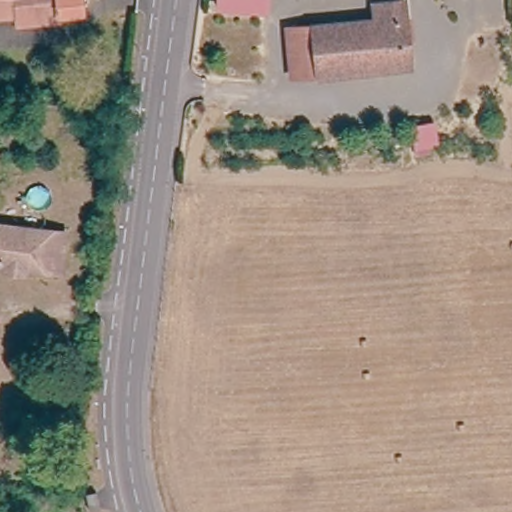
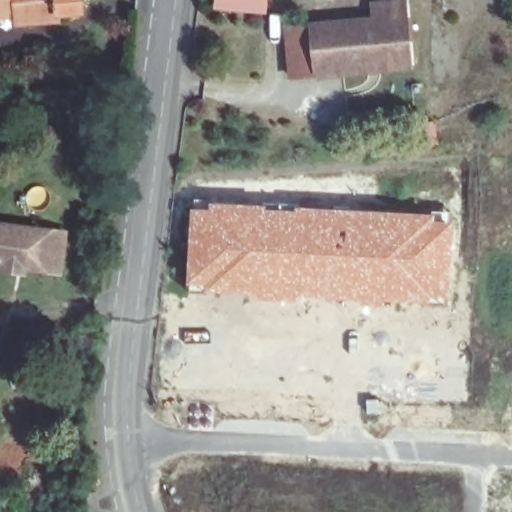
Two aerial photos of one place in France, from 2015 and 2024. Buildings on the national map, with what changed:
unchanged [(0,17),(0,0),(48,0),(50,16),(50,22),(26,24),(9,25),(8,17),(0,17)]
unchanged [(74,14),(50,16),(48,0),(72,0),(74,14)]
unchanged [(263,11),(217,7),(218,0),(264,0),(263,11)]
unchanged [(375,19),(374,2),(399,0),(404,0),(411,65),(297,75),(292,27),(375,19)]
new [(263,205),(264,202),(297,204),(297,207),(431,214),(432,211),(452,212),(452,223),(448,297),(448,305),(428,304),(384,301),(383,306),(360,305),(360,298),(297,296),(296,301),(249,297),(249,293),(207,292),(207,293),(190,292),(190,284),(187,283),(191,207),(194,208),(195,200),(210,200),(210,202),(263,205)]
unchanged [(0,225),(55,230),(51,270),(15,267),(15,272),(0,270),(0,225)]
unchanged [(102,512),(100,512),(91,512),(87,500),(96,497),(102,512)]

